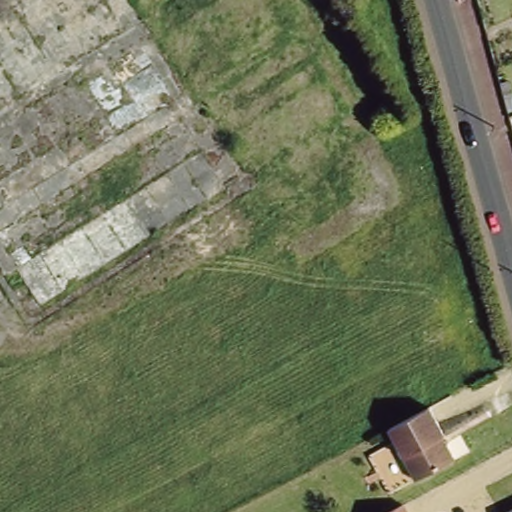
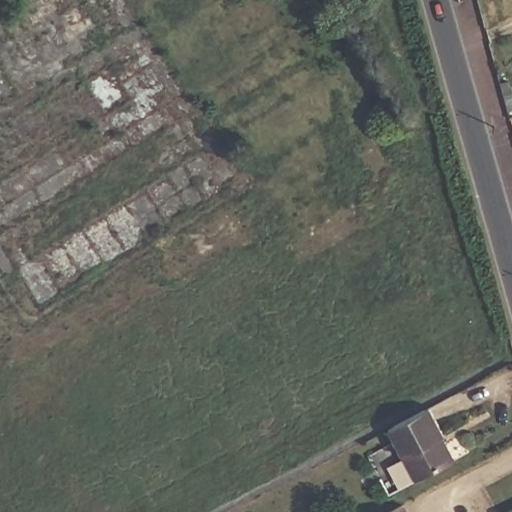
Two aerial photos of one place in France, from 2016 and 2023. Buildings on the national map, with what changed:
unchanged [(414,479),(406,462),(388,430),(429,408),(446,440),(455,457),(414,479)]
unchanged [(404,504),(409,512),(388,512),(404,504)]
unchanged [(512,511),(512,512),(511,512),(512,511)]

